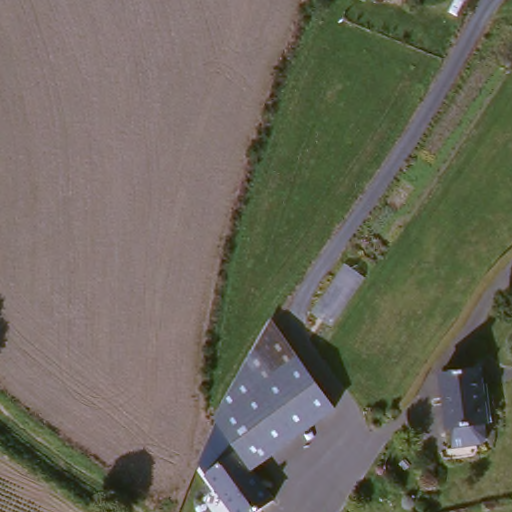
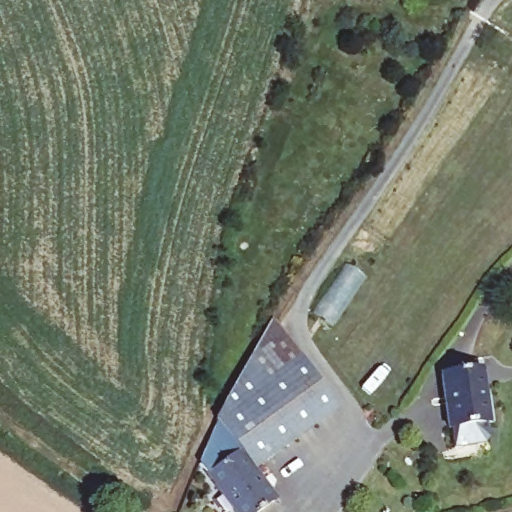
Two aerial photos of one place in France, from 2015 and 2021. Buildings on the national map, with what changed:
unchanged [(219,417),(276,318),(339,405),(256,466),(221,420),(219,417)]
unchanged [(496,424),(494,425),(496,439),(492,445),(463,449),(449,375),(489,370),(496,424)]
unchanged [(278,496),(257,512),(241,512),(203,461),(221,420),(256,466),(278,496)]

